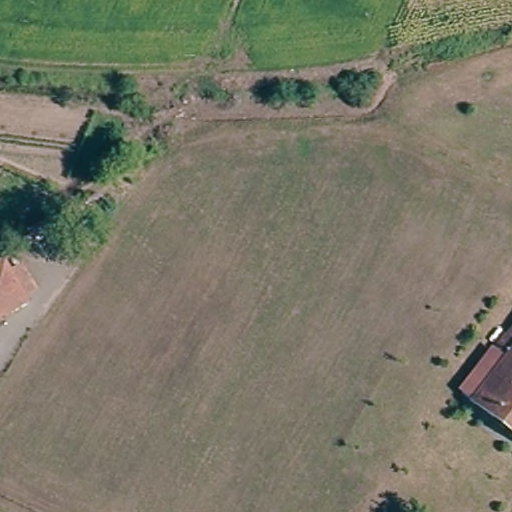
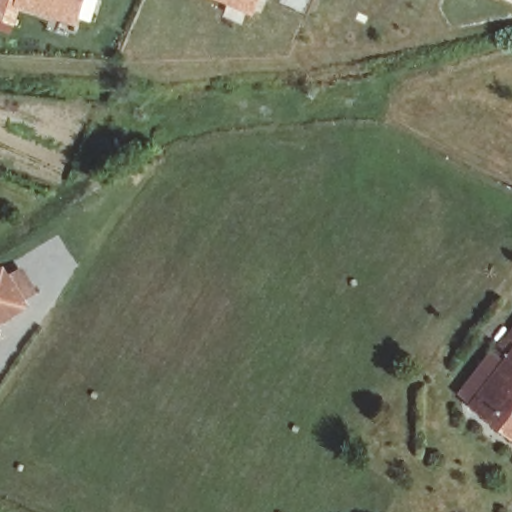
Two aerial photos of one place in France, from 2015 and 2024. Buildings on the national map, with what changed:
new [(77,26),(20,10),(15,26),(0,22),(0,0),(86,0),(77,26)]
new [(254,17),(213,0),(262,0),(254,17)]
unchanged [(0,322),(0,275),(5,272),(13,286),(26,277),(38,299),(26,307),(0,322)]
unchanged [(512,339),(512,432),(478,406),(479,406),(467,396),(499,355),(512,339)]

